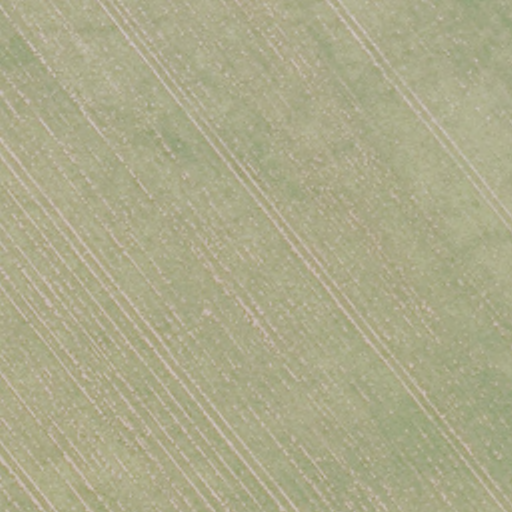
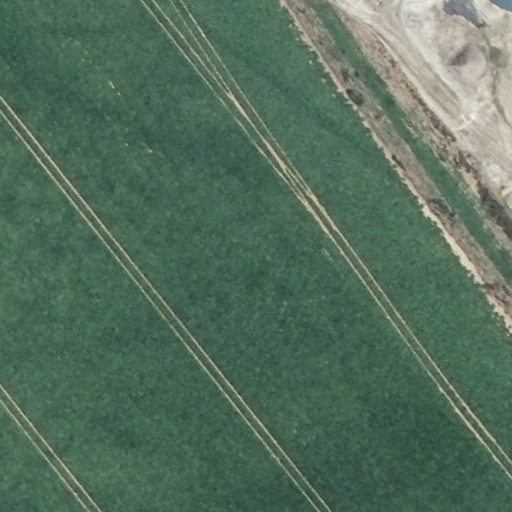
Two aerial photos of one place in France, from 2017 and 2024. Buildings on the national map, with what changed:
new [(506,10),(496,5),(490,0),(512,0),(512,12),(506,10)]

